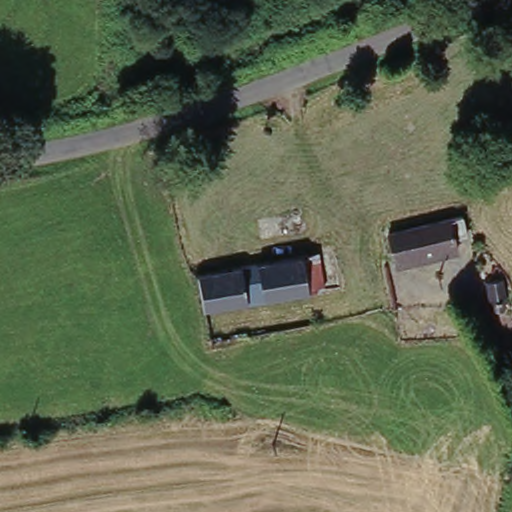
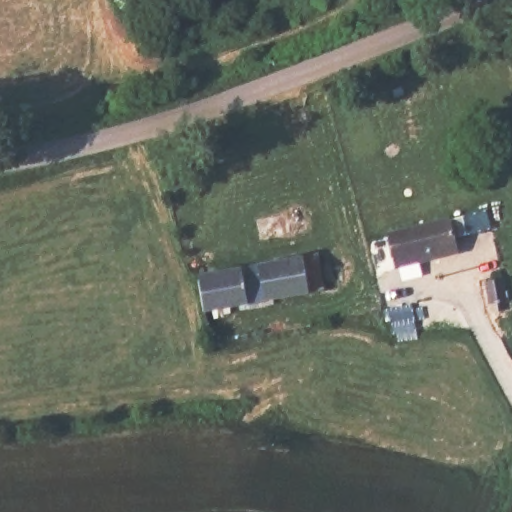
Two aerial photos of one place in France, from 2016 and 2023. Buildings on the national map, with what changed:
unchanged [(463,212),(467,231),(454,233),(456,252),(397,266),(385,230),(463,212)]
unchanged [(323,284),(324,292),(205,309),(201,269),(318,253),(323,284)]
unchanged [(487,310),(485,302),(480,281),(500,276),(505,297),(507,304),(487,310)]

